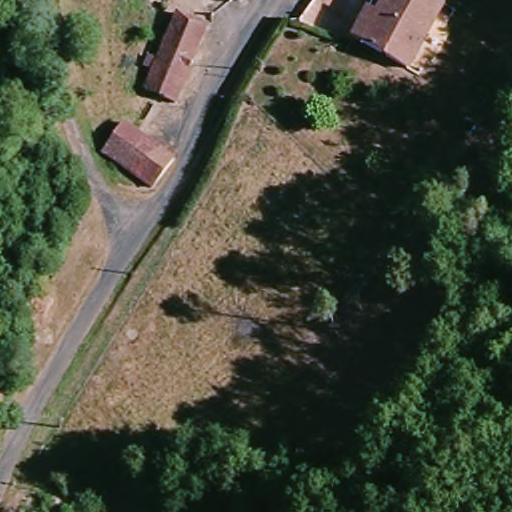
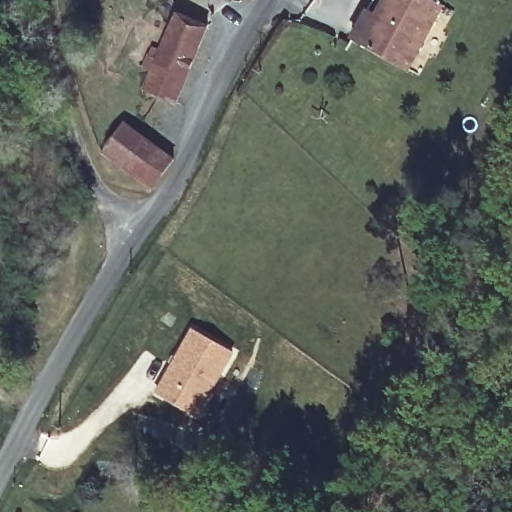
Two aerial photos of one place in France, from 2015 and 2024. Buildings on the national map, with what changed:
unchanged [(422,0),(440,10),(406,73),(352,42),(366,16),(375,21),(386,0),(422,0)]
unchanged [(163,49),(177,19),(204,31),(184,68),(172,101),(148,90),(163,49)]
unchanged [(155,186),(110,157),(127,132),(169,161),(155,186)]
new [(198,417),(155,392),(191,327),(236,353),(198,417)]

